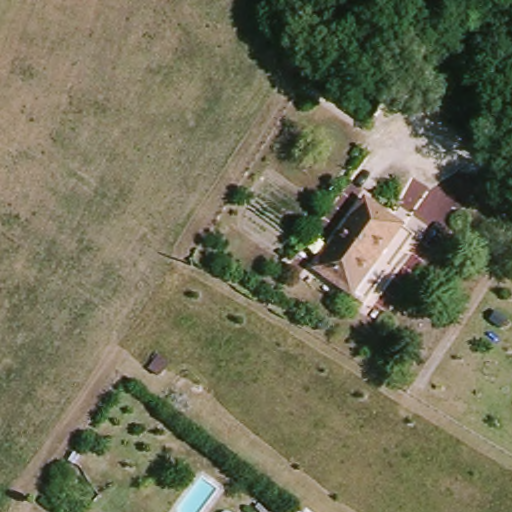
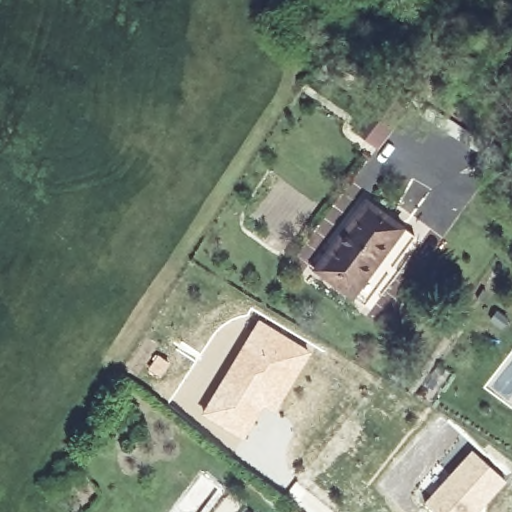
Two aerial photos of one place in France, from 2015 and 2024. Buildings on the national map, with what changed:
unchanged [(400,229),(354,296),(315,269),(362,200),(400,229)]
new [(258,319),(311,352),(275,412),(263,405),(241,439),(200,413),(258,319)]
unchanged [(166,368),(157,381),(149,375),(158,362),(166,368)]
new [(472,449),(507,481),(477,512),(434,512),(423,502),(472,449)]
new [(285,511),(287,512),(285,512),(285,511)]

